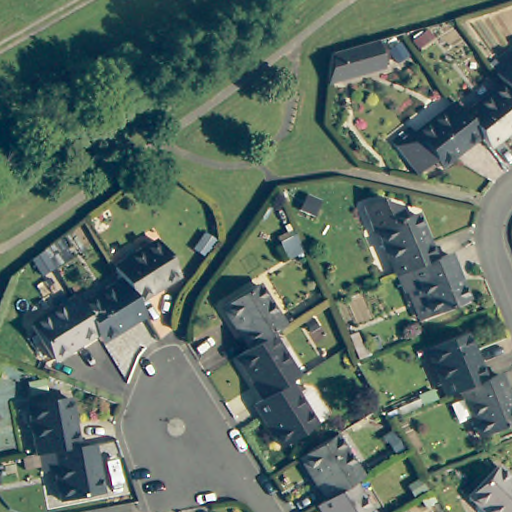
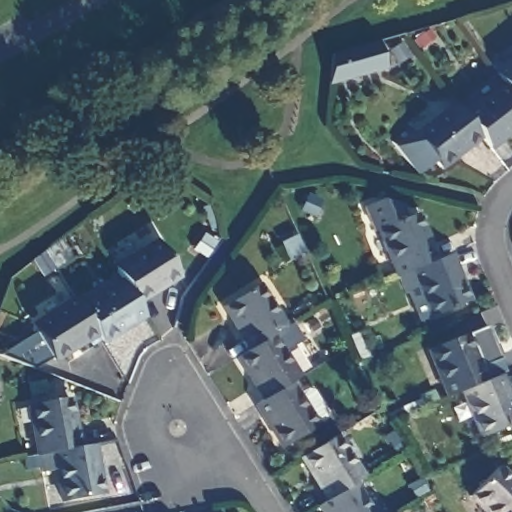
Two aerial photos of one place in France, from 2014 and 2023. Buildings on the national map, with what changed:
unchanged [(373,41),(380,68),(324,84),(327,54),(373,41)]
unchanged [(512,101),(504,91),(494,79),(512,65),(512,101)]
unchanged [(480,141),(464,121),(504,91),(512,101),(512,135),(489,153),(480,141)]
unchanged [(440,172),(435,166),(418,180),(392,146),(410,132),(416,140),(455,110),(464,121),(480,141),(440,172)]
unchanged [(410,220),(421,215),(440,261),(418,271),(403,277),(384,230),(380,232),(370,208),(384,202),(404,207),(410,220)]
unchanged [(203,256),(194,249),(206,233),(215,239),(203,256)]
unchanged [(46,279),(34,261),(45,252),(62,238),(76,260),(58,272),(46,279)]
unchanged [(118,282),(110,269),(153,243),(174,277),(132,303),(118,282)]
unchanged [(418,271),(440,261),(454,256),(473,302),(422,323),(403,277),(418,271)]
unchanged [(97,342),(92,334),(76,309),(118,282),(132,303),(140,316),(97,342)]
unchanged [(219,307),(253,286),(280,328),(267,336),(246,349),(219,307)]
unchanged [(50,361),(28,327),(71,300),(76,309),(92,334),(50,361)]
unchanged [(457,386),(443,392),(424,346),(461,331),(480,377),(457,386)]
unchanged [(246,349),(267,336),(294,378),(286,384),(260,400),(233,357),(246,349)]
unchanged [(512,418),(476,433),(457,386),(480,377),(494,371),(512,413),(512,418)]
unchanged [(278,447),(252,405),(260,400),(286,384),(293,395),(301,390),(308,392),(322,413),(320,420),(312,425),(312,426),(278,447)]
unchanged [(39,451),(30,402),(70,395),(79,444),(39,451)]
unchanged [(302,458),(336,437),(362,479),(354,484),(328,500),(302,458)]
unchanged [(94,441),(103,490),(63,497),(57,465),(43,467),(39,451),(79,444),(94,441)]
unchanged [(499,463),(512,474),(512,512),(494,512),(472,491),(499,463)]
unchanged [(328,500),(354,484),(371,512),(325,512),(320,506),(328,500)]

